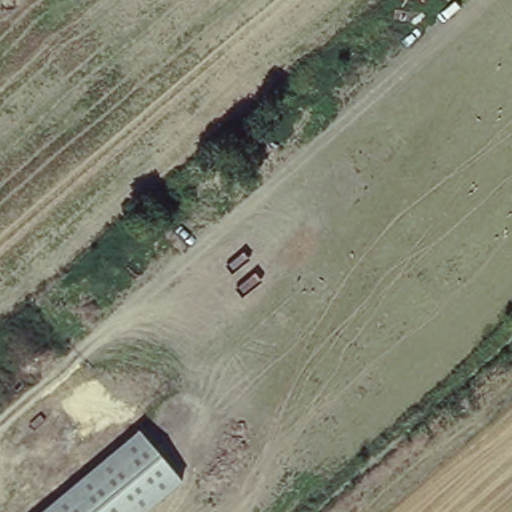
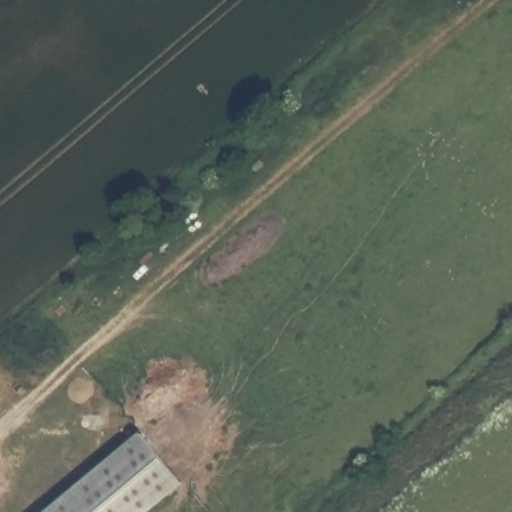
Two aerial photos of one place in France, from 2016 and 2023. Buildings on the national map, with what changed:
unchanged [(140,430),(183,480),(148,512),(43,512),(140,430)]

